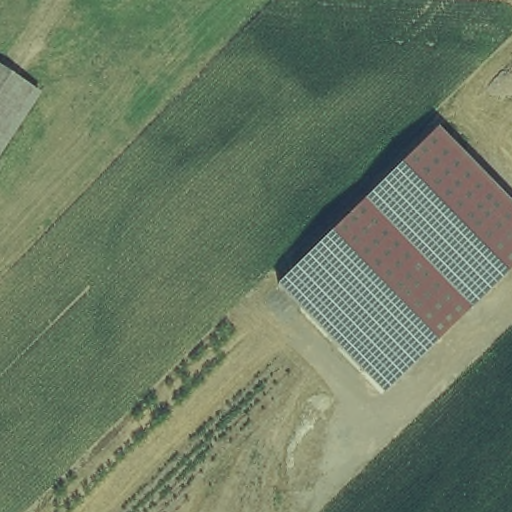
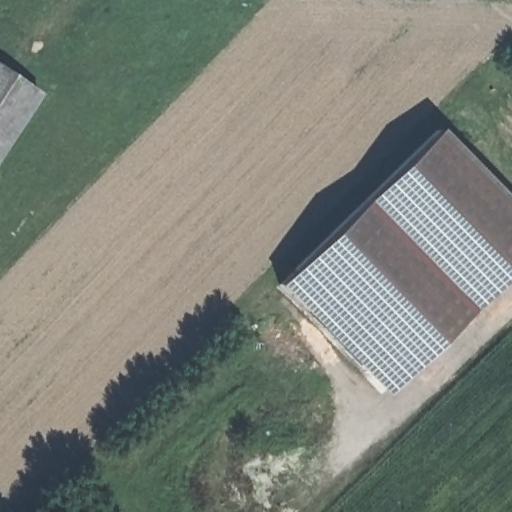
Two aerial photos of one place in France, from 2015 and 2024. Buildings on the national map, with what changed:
unchanged [(0,154),(0,64),(43,92),(0,154)]
unchanged [(437,128),(512,204),(512,269),(381,394),(280,285),(437,128)]

